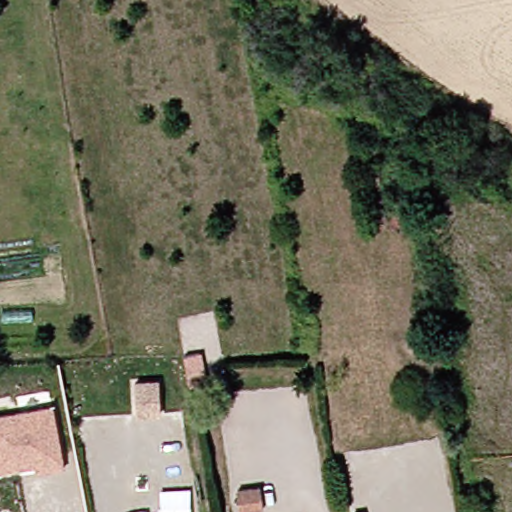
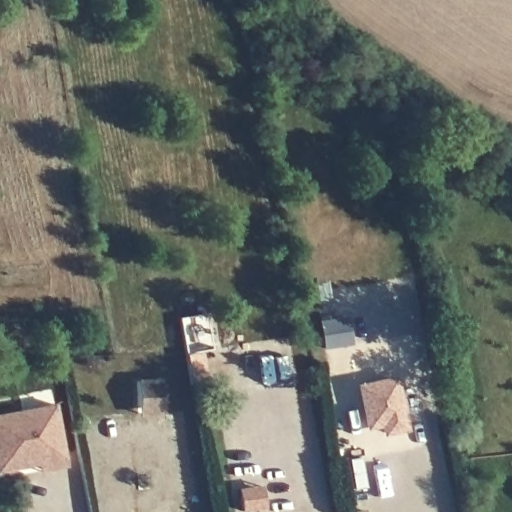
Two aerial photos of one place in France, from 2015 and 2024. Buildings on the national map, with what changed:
new [(347,317),(352,346),(323,351),(319,322),(347,317)]
unchanged [(203,385),(188,387),(182,356),(197,356),(203,385)]
new [(355,385),(396,377),(407,432),(383,437),(381,425),(362,430),(355,385)]
unchanged [(135,415),(135,407),(134,383),(157,382),(159,406),(159,414),(135,415)]
unchanged [(0,473),(0,416),(52,405),(64,467),(47,471),(37,472),(35,466),(0,473)]
unchanged [(248,512),(241,512),(239,492),(253,491),(263,490),(264,497),(266,510),(248,512)]

